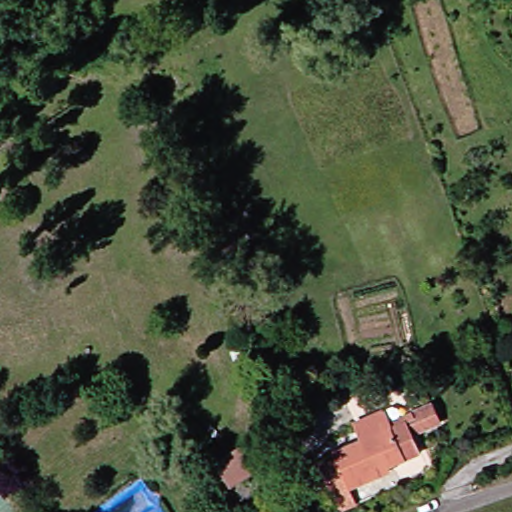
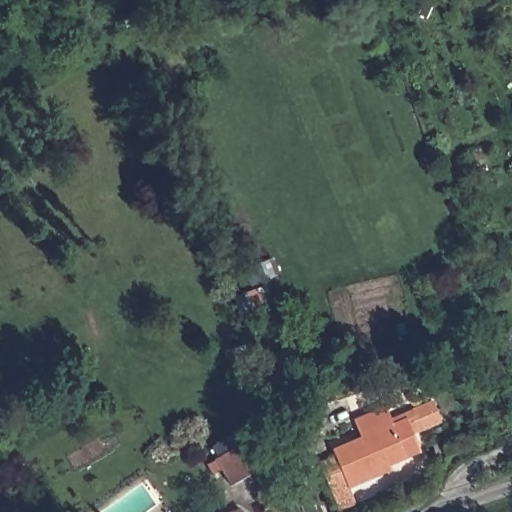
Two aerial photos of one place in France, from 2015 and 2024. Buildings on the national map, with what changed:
unchanged [(319,461),(335,455),(333,449),(366,434),(361,422),(400,407),(402,415),(431,404),(438,423),(410,435),(418,455),(386,468),(388,474),(349,489),(347,484),(330,490),(319,461)]
unchanged [(255,473),(223,494),(207,469),(239,448),(255,473)]

